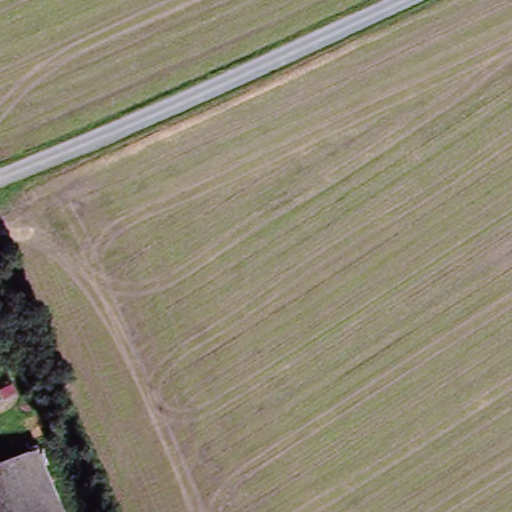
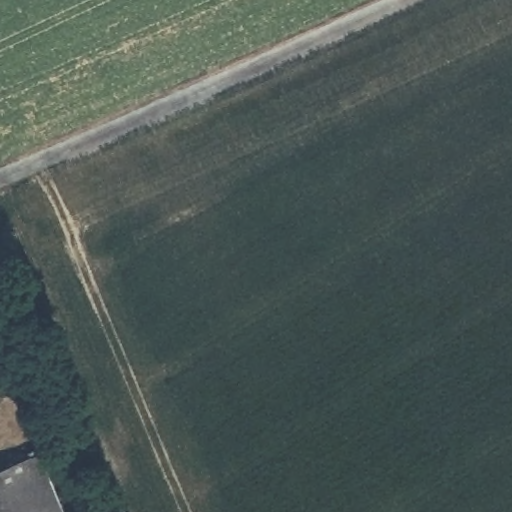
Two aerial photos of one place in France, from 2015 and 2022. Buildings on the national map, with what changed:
unchanged [(20,460),(41,512),(0,512),(0,468),(20,460)]

